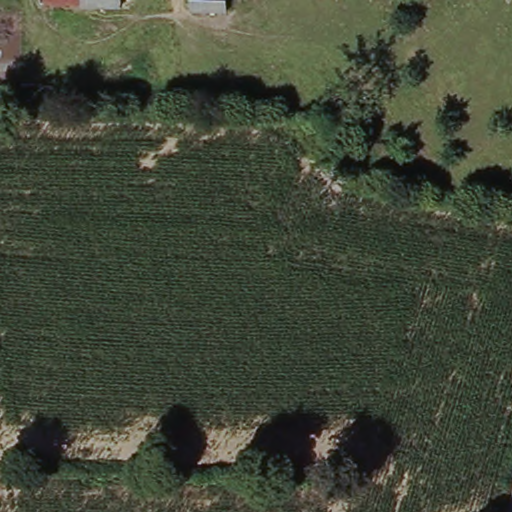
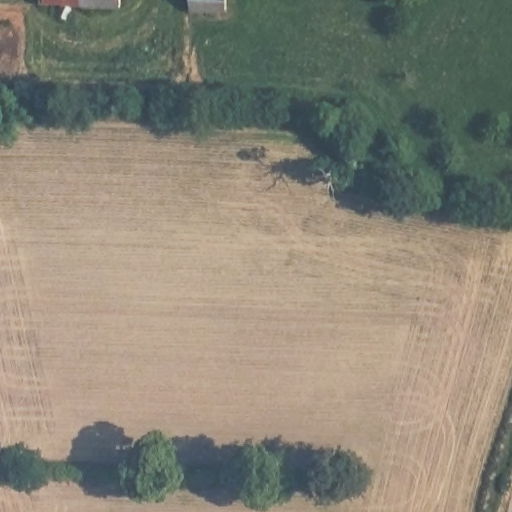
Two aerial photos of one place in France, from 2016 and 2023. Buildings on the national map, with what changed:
unchanged [(37,8),(37,0),(78,0),(78,9),(37,8)]
unchanged [(78,9),(78,0),(135,0),(135,10),(78,9)]
unchanged [(194,20),(195,0),(227,0),(226,21),(194,20)]

